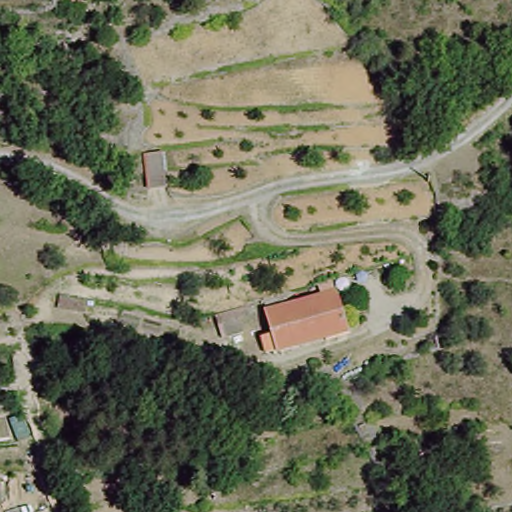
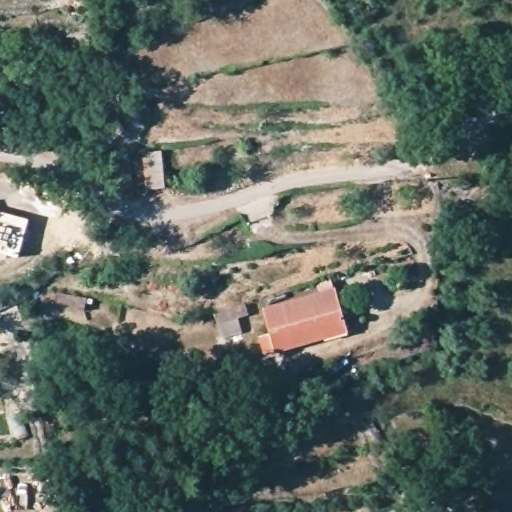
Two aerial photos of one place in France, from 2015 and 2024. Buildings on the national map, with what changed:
unchanged [(164,154),(171,188),(152,192),(145,156),(164,154)]
new [(29,218),(19,258),(0,253),(0,211),(29,218)]
unchanged [(317,346),(267,352),(262,309),(323,300),(321,283),(336,281),(342,334),(343,342),(317,346)]
unchanged [(246,286),(246,297),(212,302),(212,291),(246,286)]
unchanged [(87,320),(70,315),(59,312),(63,301),(73,304),(92,309),(87,320)]

